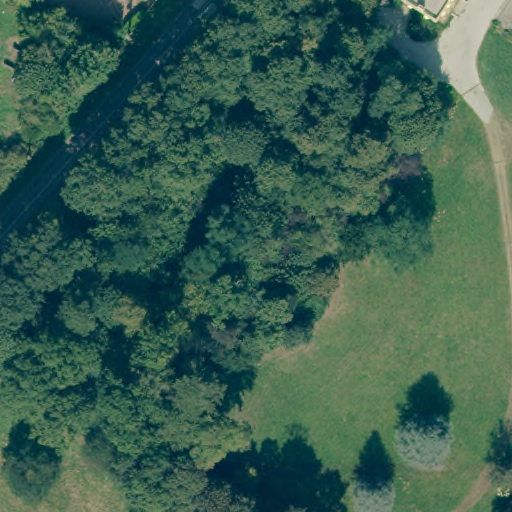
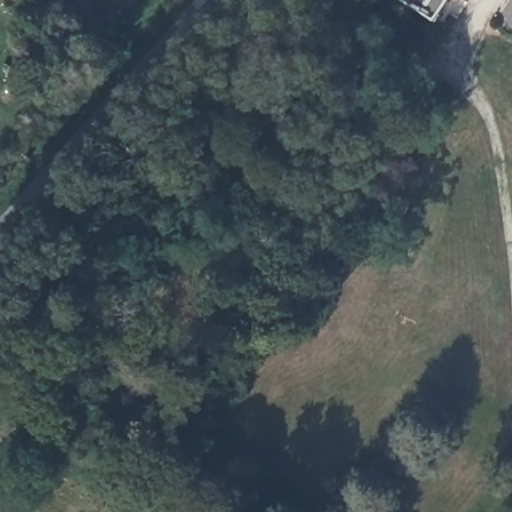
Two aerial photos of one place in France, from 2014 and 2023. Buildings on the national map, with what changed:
unchanged [(398,0),(448,0),(431,25),(398,0)]

